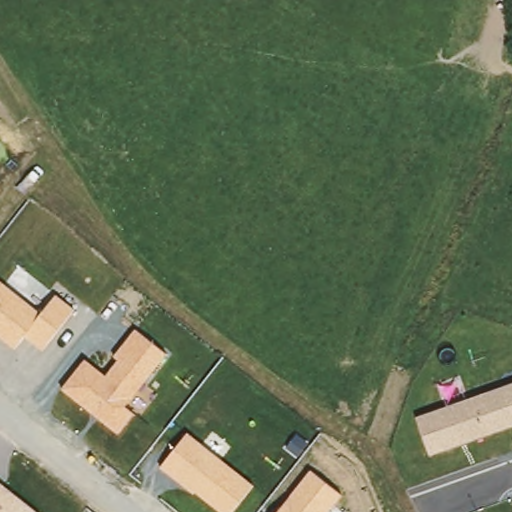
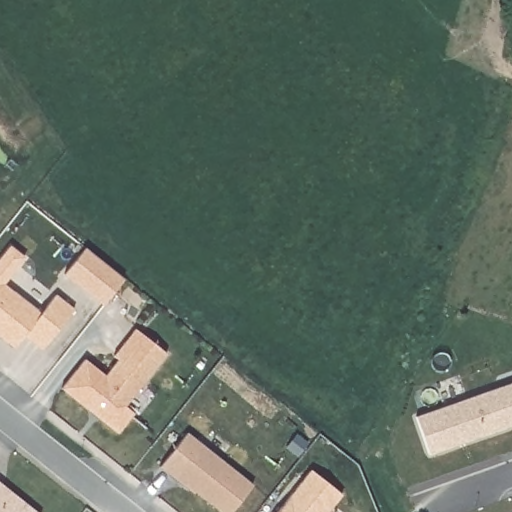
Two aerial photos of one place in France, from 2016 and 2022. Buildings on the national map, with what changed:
new [(64,277),(86,248),(126,280),(104,306),(64,277)]
unchanged [(0,281),(42,313),(56,295),(75,310),(41,352),(25,336),(14,348),(0,337),(0,281)]
unchanged [(62,389),(86,359),(106,377),(118,360),(113,357),(136,329),(167,355),(125,406),(135,414),(119,433),(62,389)]
unchanged [(428,453),(416,416),(512,383),(512,425),(428,453)]
unchanged [(196,492),(194,494),(161,467),(189,433),(254,486),(234,512),(221,512),(196,492)]
unchanged [(311,470),(342,496),(329,512),(278,512),(311,470)]
unchanged [(0,482),(37,512),(0,512),(0,482)]

